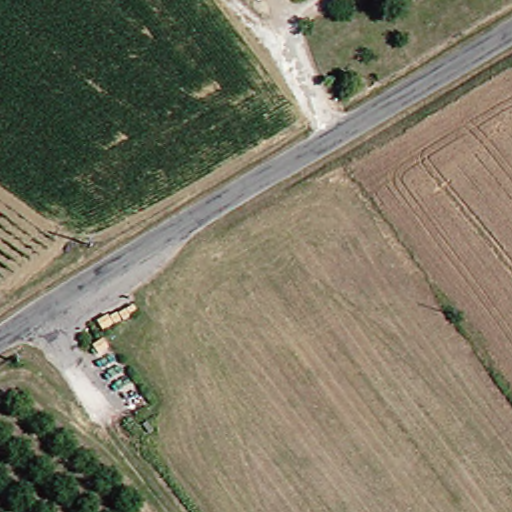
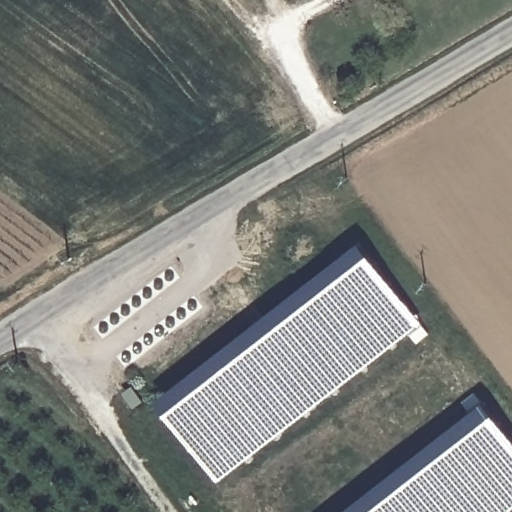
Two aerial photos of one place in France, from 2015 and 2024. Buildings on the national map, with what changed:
new [(156,402),(359,243),(421,324),(217,481),(156,402)]
new [(512,441),(512,510),(509,512),(344,512),(482,404),(512,441)]

